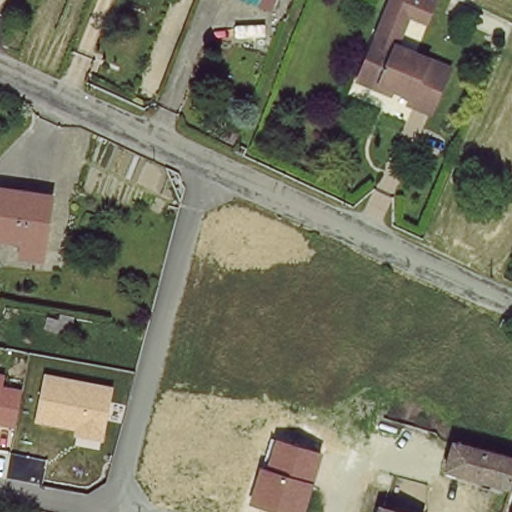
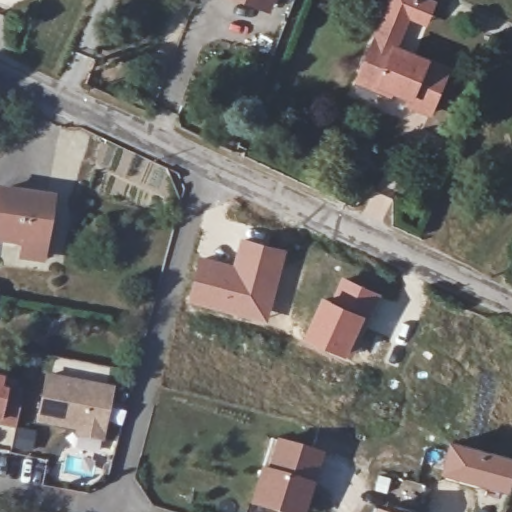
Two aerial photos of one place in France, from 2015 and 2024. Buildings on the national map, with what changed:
unchanged [(270,6),(255,0),(272,0),(270,6)]
unchanged [(355,78),(360,67),(390,0),(434,0),(437,1),(429,21),(410,13),(395,43),(431,60),(445,66),(427,111),(415,106),(407,103),(410,94),(393,87),(390,94),(355,78)]
unchanged [(1,194),(50,201),(41,251),(0,243),(0,197),(1,194)]
new [(199,254),(234,263),(241,236),(288,249),(267,323),(187,302),(199,254)]
new [(342,275),(381,292),(370,314),(332,297),(342,275)]
new [(323,293),(332,297),(370,314),(348,356),(303,338),(323,293)]
unchanged [(74,436),(76,430),(36,422),(46,373),(114,386),(103,441),(74,436)]
unchanged [(0,426),(0,374),(5,375),(3,386),(24,390),(15,428),(0,426)]
unchanged [(306,512),(276,512),(250,503),(262,465),(267,468),(276,438),(323,453),(306,512)]
unchanged [(449,469),(457,440),(466,444),(512,456),(512,481),(511,484),(449,469)]
unchanged [(408,512),(381,512),(383,505),(408,512)]

